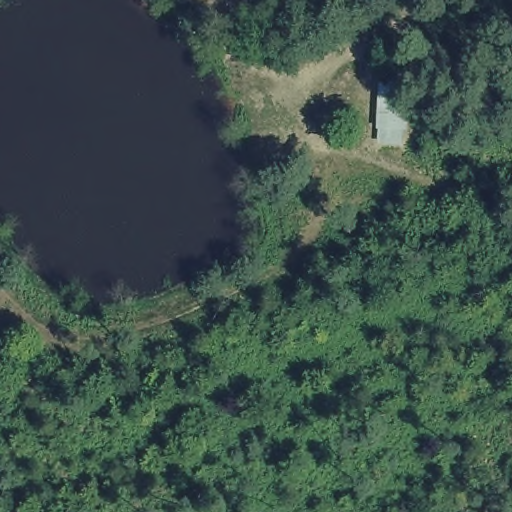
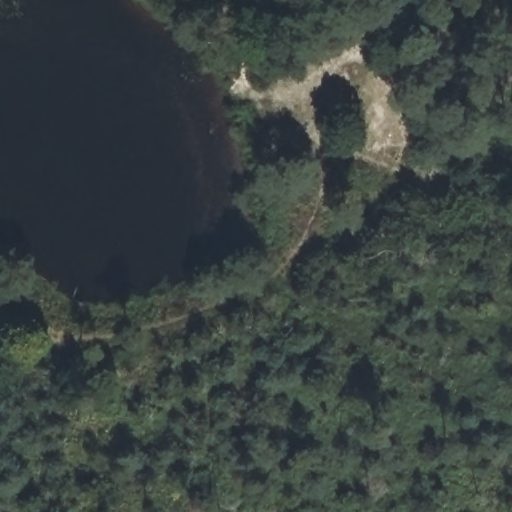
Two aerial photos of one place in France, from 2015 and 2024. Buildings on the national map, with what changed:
unchanged [(410,69),(401,141),(373,137),(383,64),(410,69)]

